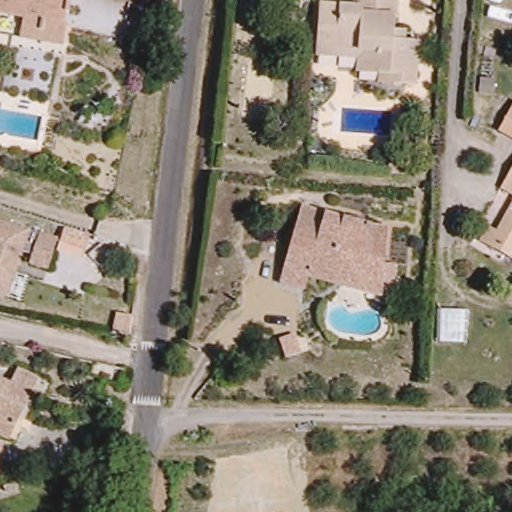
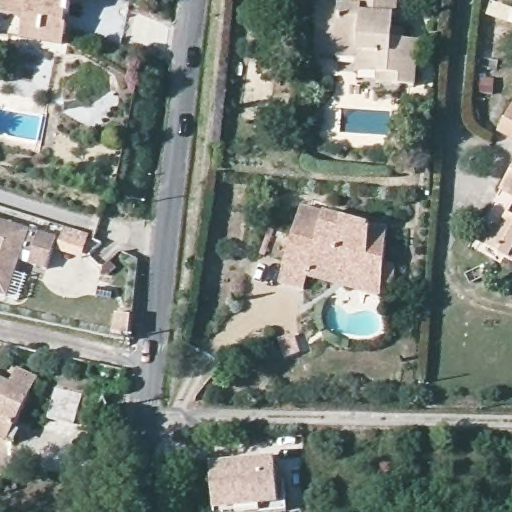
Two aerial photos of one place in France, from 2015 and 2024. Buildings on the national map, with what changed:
unchanged [(18,39),(22,19),(7,16),(0,15),(0,0),(60,0),(60,2),(69,4),(67,14),(63,14),(62,26),(65,27),(63,35),(62,46),(18,39)]
unchanged [(353,77),(354,65),(315,62),(317,39),(318,10),(353,12),(353,0),(396,0),(395,22),(392,22),(392,37),(403,37),(403,47),(417,48),(414,92),(395,91),(379,90),(379,79),(353,77)]
unchanged [(498,132),(512,109),(512,140),(498,132)]
unchanged [(410,175),(400,174),(400,160),(411,161),(410,175)]
unchanged [(500,190),(512,168),(512,198),(500,190)]
unchanged [(102,197),(106,181),(117,183),(113,200),(102,197)]
unchanged [(303,292),(279,286),(300,208),(370,228),(385,229),(382,286),(381,298),(307,278),(303,292)]
unchanged [(505,214),(512,218),(512,246),(504,260),(478,244),(487,230),(494,234),(505,214)]
unchanged [(13,301),(2,297),(0,297),(0,223),(52,241),(42,271),(25,264),(27,256),(17,252),(10,274),(21,278),(13,301)]
unchanged [(279,342),(293,338),(299,356),(285,361),(279,342)]
unchanged [(0,420),(0,381),(33,397),(18,429),(12,442),(0,436),(0,420)]
unchanged [(109,399),(102,395),(107,386),(113,390),(109,399)]
new [(278,500),(285,500),(287,512),(213,512),(210,461),(273,457),(278,500)]

